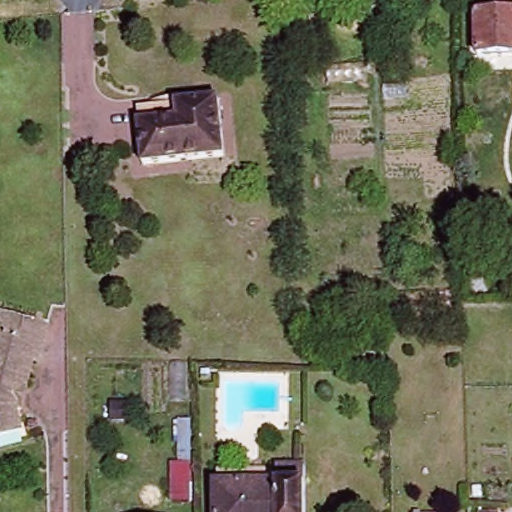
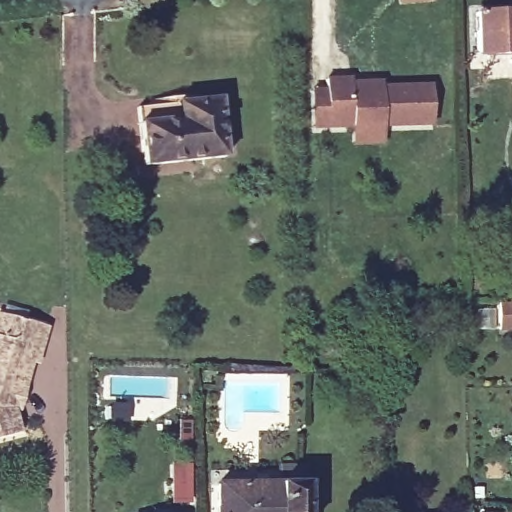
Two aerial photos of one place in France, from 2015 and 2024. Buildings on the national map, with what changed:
unchanged [(398,0),(410,0),(399,1),(398,0)]
unchanged [(472,54),(471,14),(512,13),(512,53),(472,54)]
new [(324,80),(349,81),(349,84),(369,84),(374,89),(430,87),(431,126),(325,129),(310,129),(309,92),(324,92),(324,80)]
unchanged [(224,162),(145,171),(141,129),(184,123),(183,109),(194,107),(218,105),(224,162)]
new [(512,305),(512,331),(496,331),(495,305),(512,305)]
unchanged [(33,348),(29,361),(20,390),(15,410),(8,407),(7,410),(14,432),(0,436),(0,316),(38,327),(33,348)]
unchanged [(211,486),(273,485),(273,468),(299,468),(300,512),(211,512),(211,486)]

